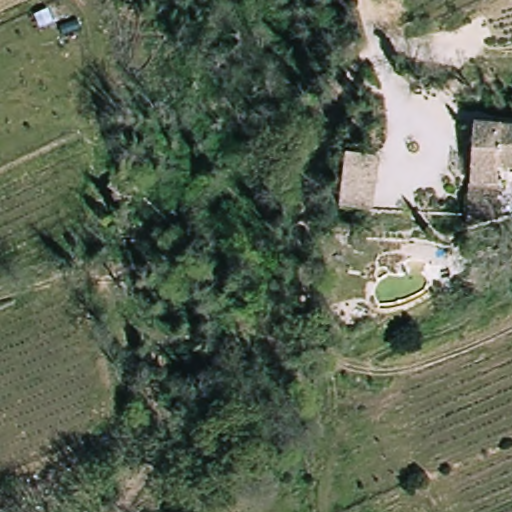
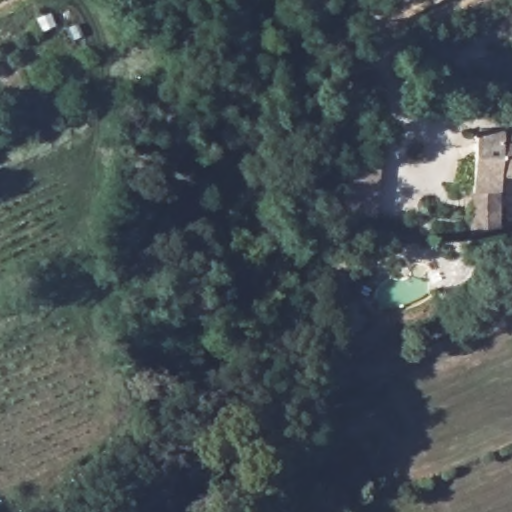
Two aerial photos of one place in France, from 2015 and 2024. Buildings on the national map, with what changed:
unchanged [(490,131),(493,115),(512,119),(512,158),(511,158),(485,153),(490,131)]
unchanged [(485,153),(511,158),(501,217),(472,212),(481,171),(485,153)]
unchanged [(347,208),(349,164),(383,169),(376,213),(347,208)]

